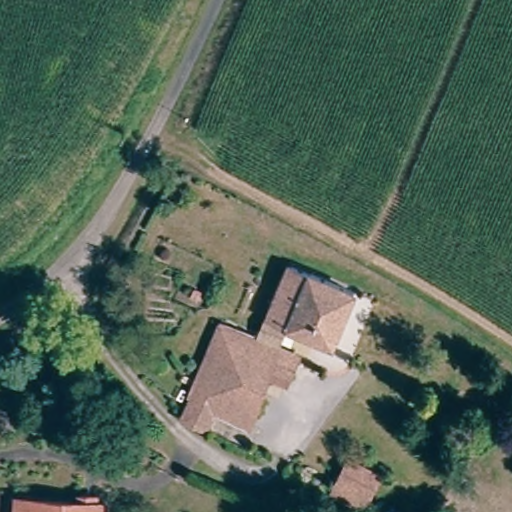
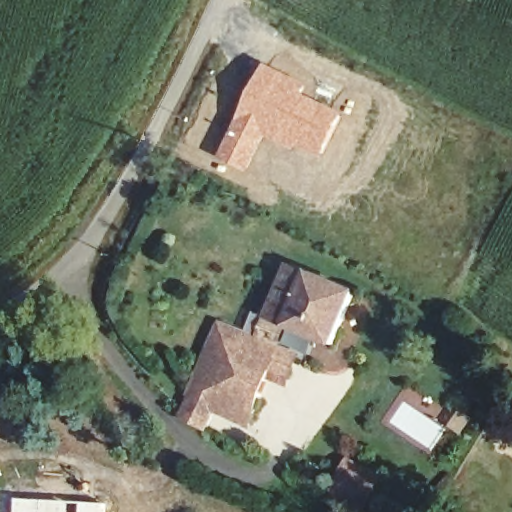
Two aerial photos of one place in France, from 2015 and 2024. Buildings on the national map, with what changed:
new [(254,85),(268,62),(307,84),(303,92),(344,112),(321,160),(267,138),(248,173),(218,158),(254,85)]
unchanged [(284,262),(363,292),(340,352),(265,317),(284,262)]
unchanged [(187,391),(191,380),(215,318),(290,348),(264,415),(249,410),(202,396),(187,391)]
unchanged [(202,396),(249,410),(243,434),(198,417),(202,396)]
unchanged [(353,512),(332,502),(345,464),(373,474),(366,494),(360,512),(353,512)]
unchanged [(19,512),(21,501),(83,508),(84,497),(105,499),(102,510),(115,511),(114,512),(19,512)]

